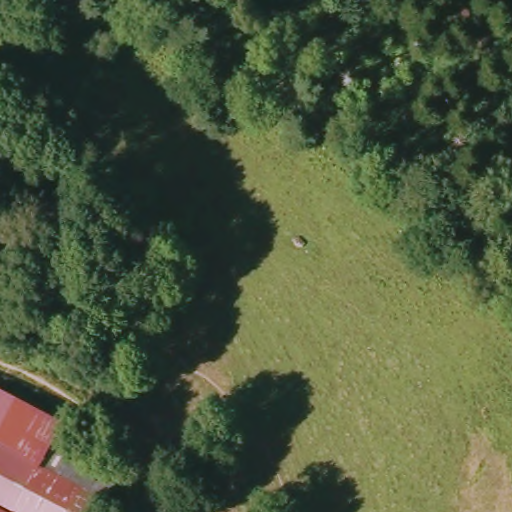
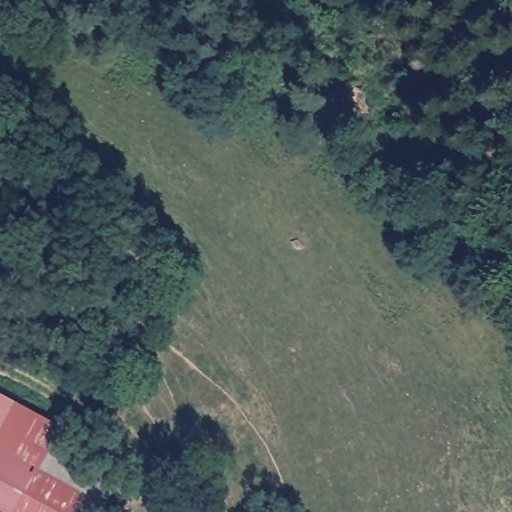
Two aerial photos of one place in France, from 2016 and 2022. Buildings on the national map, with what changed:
unchanged [(60,427),(50,445),(38,468),(0,447),(0,395),(60,427)]
unchanged [(4,512),(0,510),(0,447),(38,468),(50,445),(113,485),(99,512),(4,512)]

